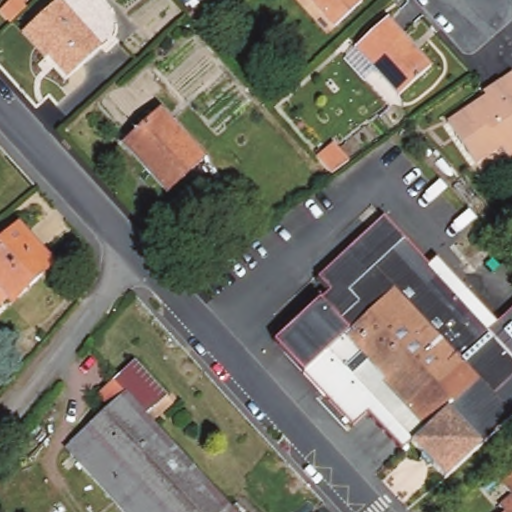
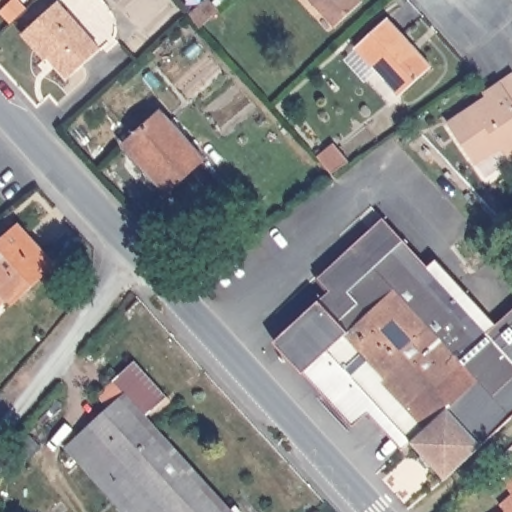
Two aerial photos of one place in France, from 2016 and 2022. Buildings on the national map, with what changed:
unchanged [(0,20),(0,1),(2,0),(11,0),(19,9),(3,24),(0,20)]
unchanged [(187,0),(203,0),(207,5),(189,21),(177,9),(187,0)]
unchanged [(333,28),(308,0),(358,0),(359,1),(333,28)]
unchanged [(96,53),(67,79),(49,59),(42,65),(17,39),(54,6),(96,53)]
unchanged [(347,60),(357,51),(357,50),(388,21),(431,69),(400,97),(377,72),(366,82),(347,60)]
unchanged [(511,167),(500,151),(474,168),(447,127),(465,114),(486,98),(484,96),(512,76),(512,166),(511,167)]
unchanged [(200,160),(167,190),(124,144),(157,113),(200,160)]
unchanged [(323,170),(313,159),(310,155),(327,140),(341,157),(323,170)]
unchanged [(444,483),(325,352),(348,329),(321,299),(330,289),(319,277),(383,219),(512,361),(512,419),(444,483)]
unchanged [(8,302),(5,298),(0,302),(0,241),(14,230),(48,266),(8,302)]
unchanged [(238,512),(120,512),(62,447),(105,407),(91,391),(130,358),(162,396),(141,417),(224,509),(230,504),(238,512)]
unchanged [(493,511),(487,503),(501,491),(495,486),(507,474),(512,479),(512,512),(492,512),(493,511)]

